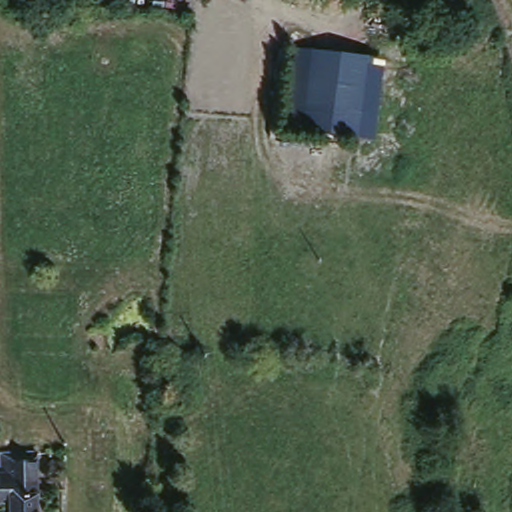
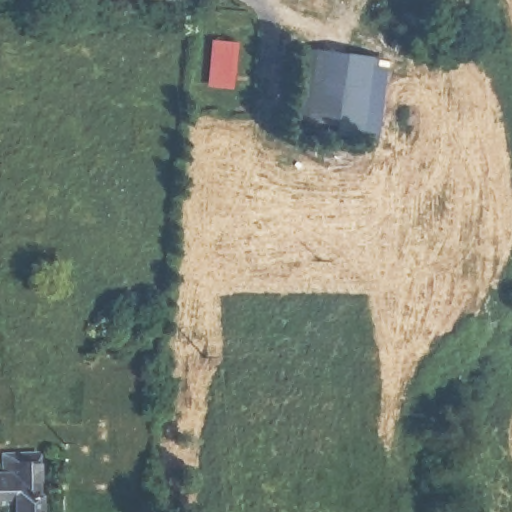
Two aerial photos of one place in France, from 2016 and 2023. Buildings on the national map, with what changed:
new [(238,47),(232,93),(206,92),(210,45),(238,47)]
unchanged [(387,55),(384,137),(288,130),(296,45),(387,55)]
unchanged [(7,455),(40,455),(41,512),(14,512),(14,508),(0,509),(0,474),(8,473),(7,455)]

